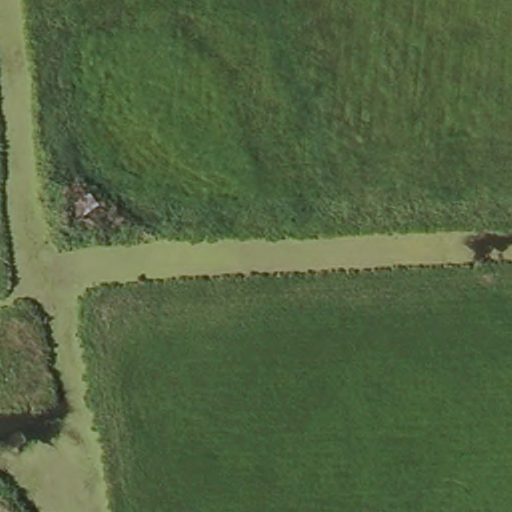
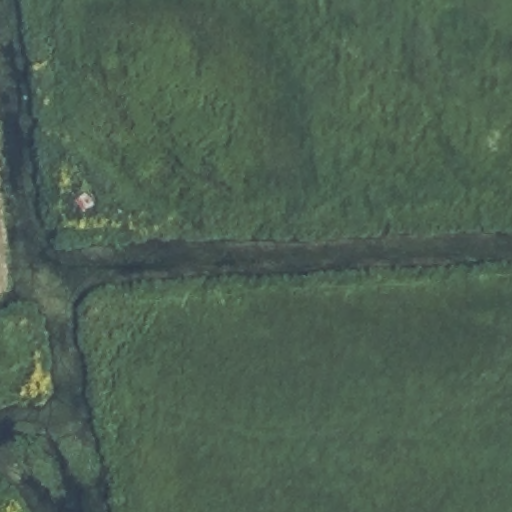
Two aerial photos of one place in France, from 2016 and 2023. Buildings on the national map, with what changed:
unchanged [(60,229),(71,213),(86,223),(73,239),(60,229)]

